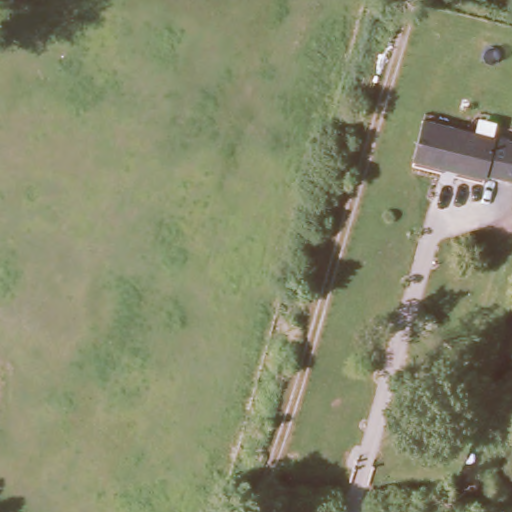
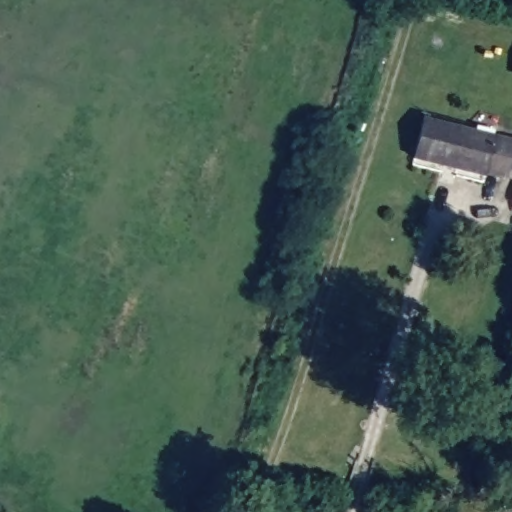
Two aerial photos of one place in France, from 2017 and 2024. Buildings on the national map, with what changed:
unchanged [(494,133),(486,173),(415,156),(423,117),(494,133)]
unchanged [(512,180),(486,173),(494,133),(512,138),(512,180)]

